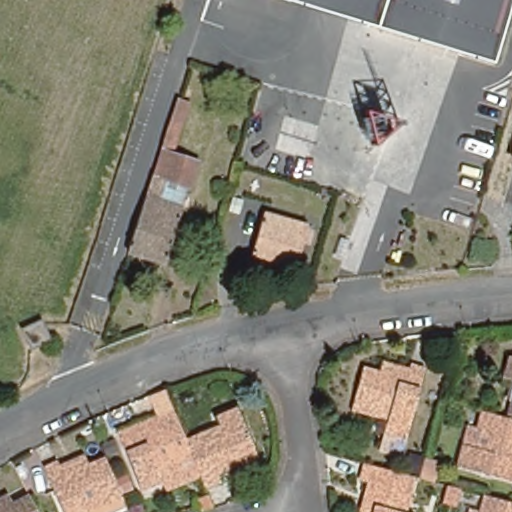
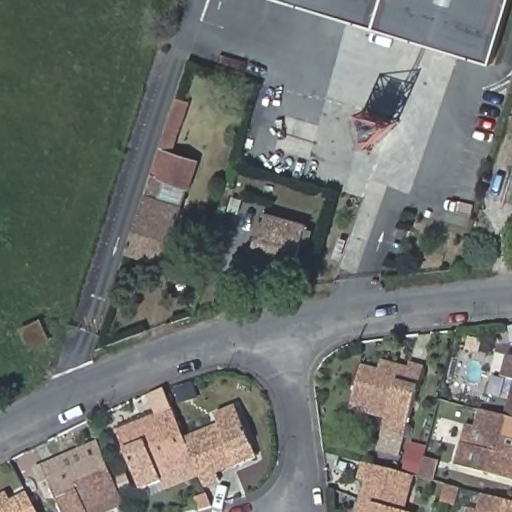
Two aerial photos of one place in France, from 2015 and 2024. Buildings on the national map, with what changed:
unchanged [(493,64),(286,0),(512,0),(512,4),(493,64)]
unchanged [(186,184),(165,177),(162,187),(183,193),(179,205),(160,261),(123,248),(157,146),(174,94),(184,97),(167,149),(195,157),(186,184)]
unchanged [(263,212),(306,225),(296,265),(252,253),(252,251),(263,212)]
unchanged [(41,321),(51,340),(31,347),(23,328),(41,321)]
unchanged [(510,419),(509,419),(498,416),(508,378),(499,376),(505,354),(512,356),(512,420),(510,419)]
unchanged [(355,413),(367,369),(385,374),(388,365),(413,371),(414,367),(427,370),(408,441),(386,436),(390,422),(373,417),(355,413)]
unchanged [(162,478),(140,487),(117,432),(139,422),(157,415),(149,395),(166,389),(185,438),(193,457),(176,464),(158,471),(162,478)]
unchanged [(222,481),(205,488),(193,457),(185,438),(220,422),(217,415),(237,407),(257,457),(237,467),(219,474),(222,481)]
unchanged [(450,463),(455,442),(464,445),(469,427),(473,410),(498,416),(509,419),(510,419),(512,420),(512,480),(450,463)]
unchanged [(63,463),(64,468),(89,457),(106,450),(112,466),(127,501),(109,508),(101,512),(67,512),(48,471),(63,463)]
unchanged [(365,481),(358,479),(362,463),(374,466),(396,472),(398,472),(414,477),(409,495),(405,512),(357,512),(360,500),(365,481)]
unchanged [(12,501),(28,493),(31,498),(39,512),(0,512),(0,496),(7,492),(12,501)]
unchanged [(202,510),(197,497),(207,493),(212,507),(202,510)]
unchanged [(499,498),(512,502),(512,512),(477,512),(481,494),(499,498)]

